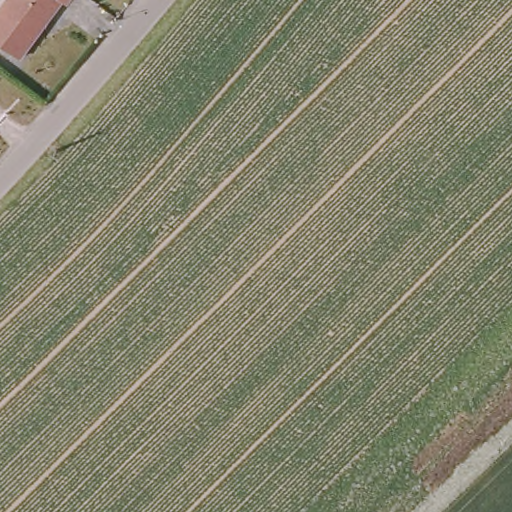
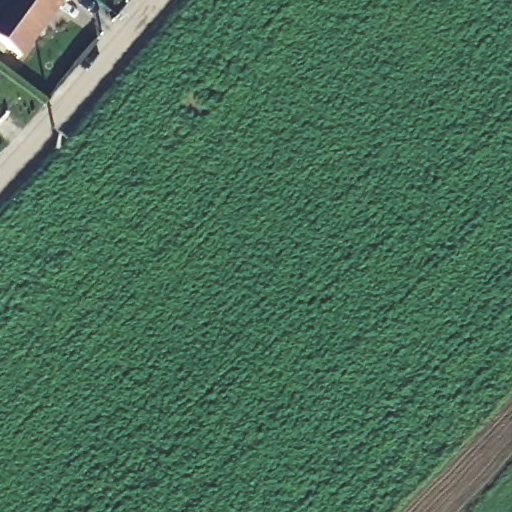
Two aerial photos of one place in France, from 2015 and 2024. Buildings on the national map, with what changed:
unchanged [(0,43),(0,12),(8,0),(63,0),(20,58),(0,43)]
unchanged [(63,0),(69,0),(67,3),(63,0)]

